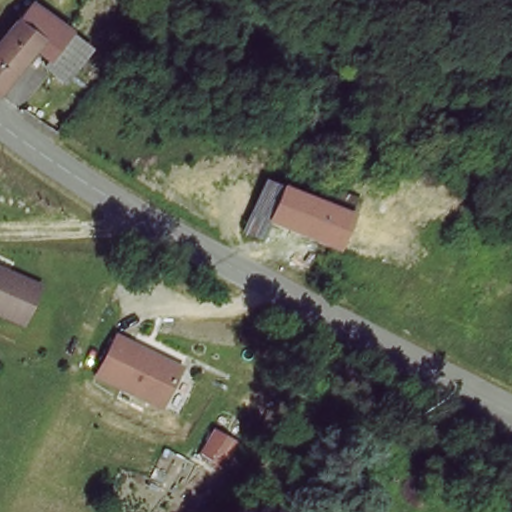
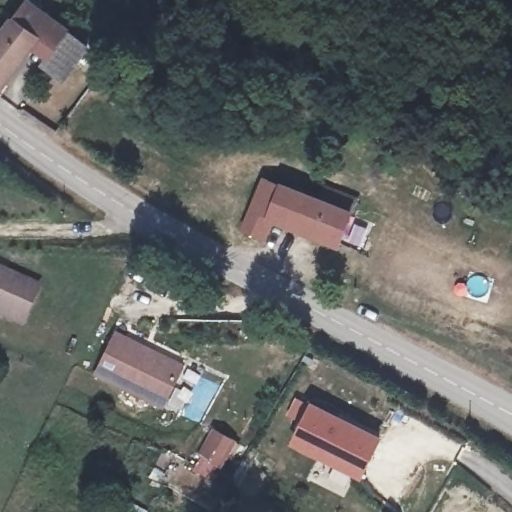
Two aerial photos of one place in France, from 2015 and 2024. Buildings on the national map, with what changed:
unchanged [(85,47),(60,80),(45,69),(55,56),(50,52),(35,41),(0,87),(0,37),(25,2),(65,32),(76,41),(85,47)]
unchanged [(343,256),(275,229),(267,247),(251,241),(271,193),(327,214),(333,200),(346,205),(361,211),(343,256)]
unchanged [(0,317),(0,270),(41,288),(22,327),(0,317)]
unchanged [(93,379),(113,340),(178,373),(158,412),(93,379)]
new [(360,480),(290,446),(311,403),(380,439),(360,480)]

